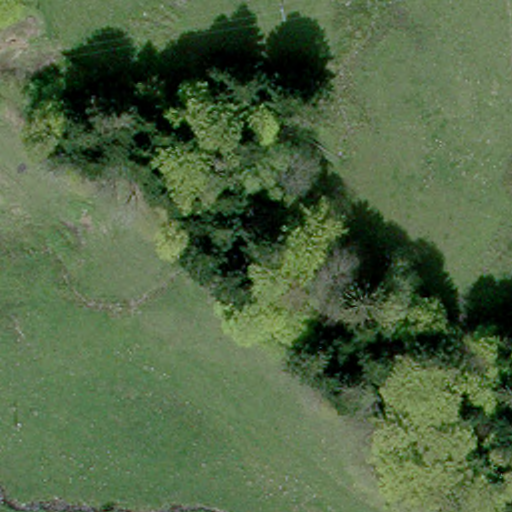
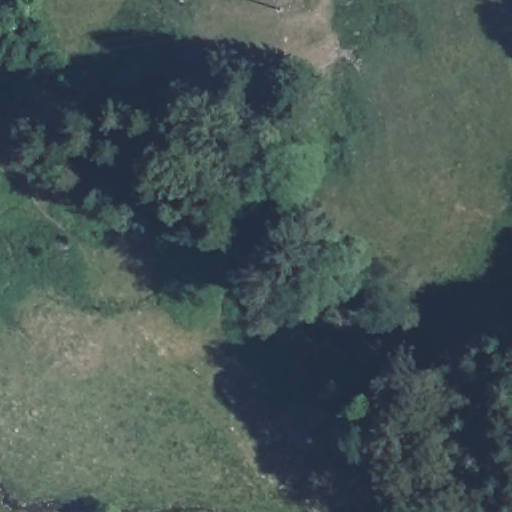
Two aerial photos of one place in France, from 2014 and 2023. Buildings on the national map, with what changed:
[]

